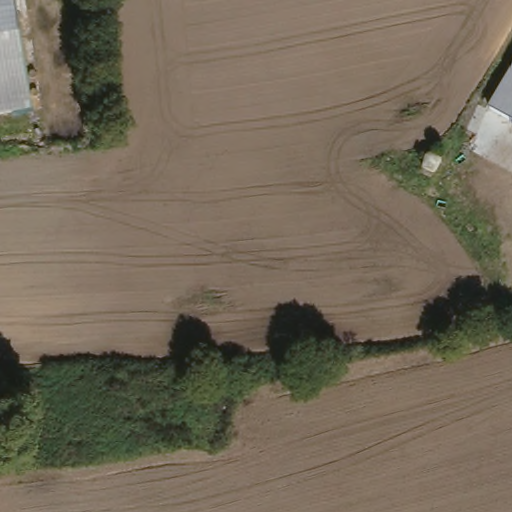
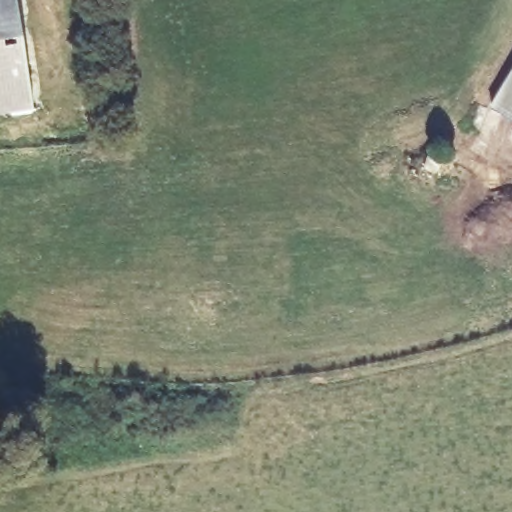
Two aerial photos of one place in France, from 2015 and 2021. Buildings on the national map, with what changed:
unchanged [(0,113),(0,0),(17,0),(35,107),(0,113)]
unchanged [(512,61),(512,123),(486,103),(512,61)]

